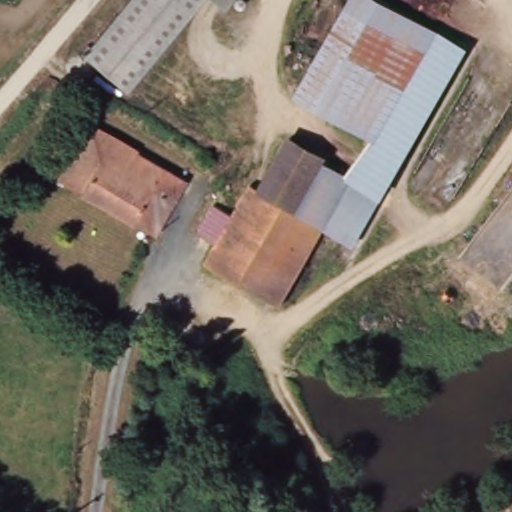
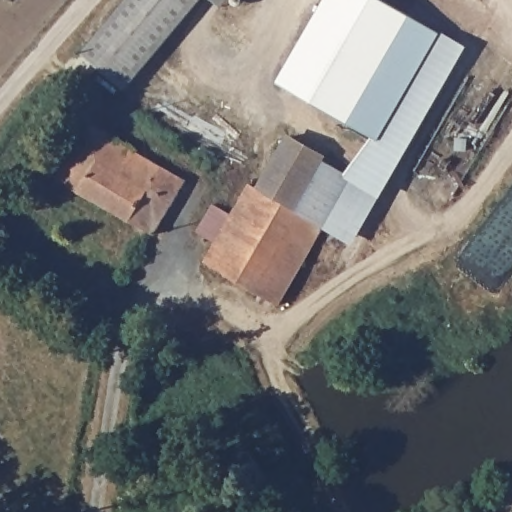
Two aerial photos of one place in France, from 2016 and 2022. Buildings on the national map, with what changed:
unchanged [(87,54),(131,0),(176,0),(182,5),(119,79),(87,54)]
unchanged [(441,35),(381,141),(374,138),(305,99),(360,0),(378,0),(441,35)]
unchanged [(464,49),(404,155),(401,154),(352,241),(346,238),(331,230),(358,182),(351,179),(355,171),(374,138),(381,141),(441,35),(464,49)]
unchanged [(82,190),(59,177),(64,170),(53,164),(60,150),(72,156),(92,124),(187,180),(156,232),(82,190)]
unchanged [(297,141),(333,162),(330,167),(302,214),(266,193),(297,141)]
unchanged [(211,265),(222,247),(204,236),(220,209),(238,218),(256,187),(266,193),(302,214),(330,167),(351,179),(358,182),(331,230),(286,309),(211,265)]

